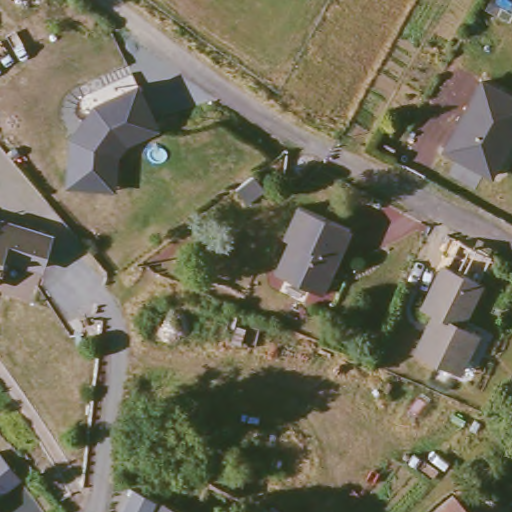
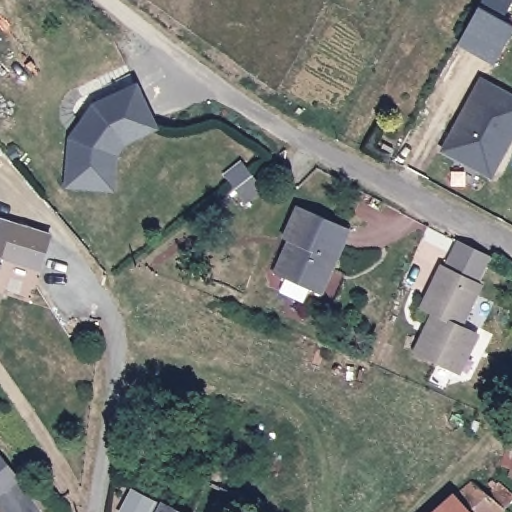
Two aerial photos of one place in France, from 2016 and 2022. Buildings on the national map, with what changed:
new [(500,23),(512,29),(512,33),(493,67),(456,46),(482,0),(504,0),(511,4),(500,23)]
unchanged [(127,144),(118,157),(114,192),(61,187),(66,137),(90,104),(140,83),(157,130),(127,144)]
unchanged [(479,84),(512,102),(512,135),(508,142),(488,180),(441,154),(479,84)]
unchanged [(390,166),(375,159),(382,147),(396,155),(390,166)]
unchanged [(253,204),(239,190),(255,175),(268,187),(253,204)]
unchanged [(327,297),(281,277),(290,256),(299,259),(303,249),(287,242),(301,208),(356,230),(346,252),(327,297)]
unchanged [(46,243),(36,272),(0,260),(0,227),(46,243)]
unchanged [(478,276),(461,321),(476,327),(467,351),(461,348),(454,365),(417,350),(425,332),(431,334),(435,326),(427,322),(431,314),(417,308),(436,260),(478,276)]
unchanged [(10,476),(0,484),(0,464),(10,476)]
unchanged [(448,496),(451,498),(474,480),(500,508),(497,512),(429,512),(448,496)]
unchanged [(155,501),(157,498),(184,512),(150,512),(155,501)]

